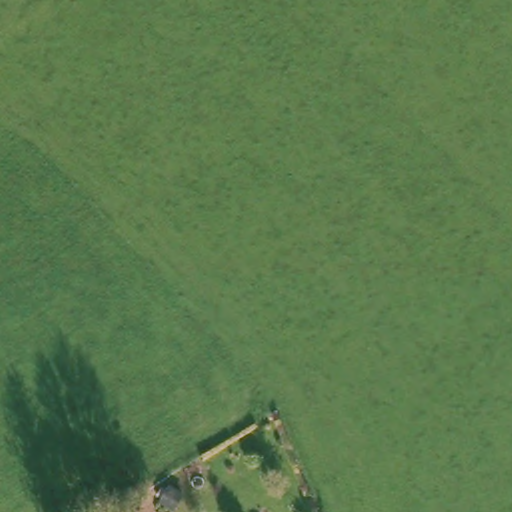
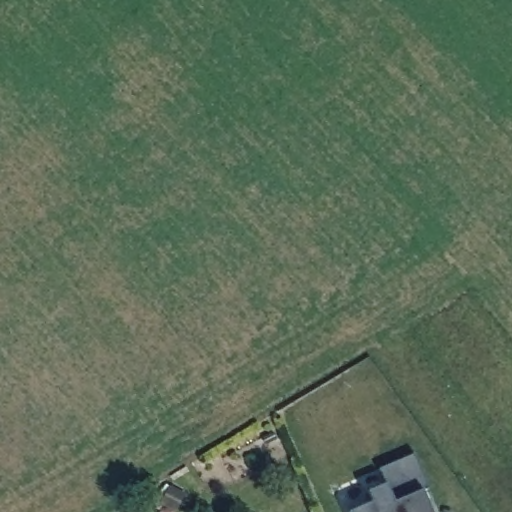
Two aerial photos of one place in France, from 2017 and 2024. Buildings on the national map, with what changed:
new [(385,480),(378,464),(413,449),(428,484),(422,487),(433,512),(350,512),(348,509),(372,499),(367,488),(385,480)]

